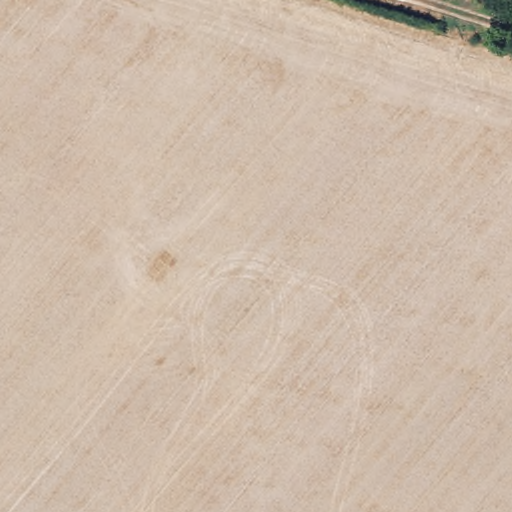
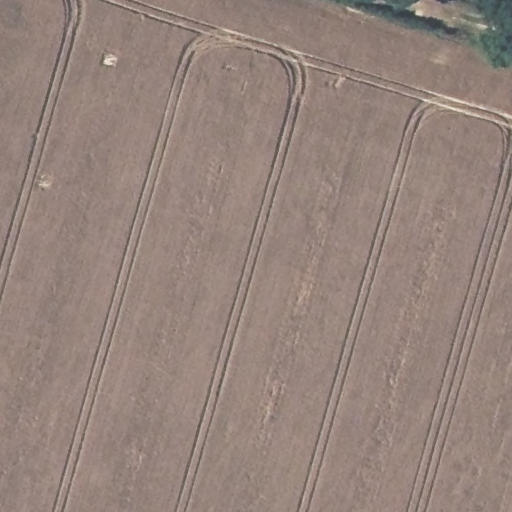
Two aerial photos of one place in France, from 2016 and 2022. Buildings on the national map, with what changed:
unchanged [(503,0),(512,0),(512,5),(503,0)]

